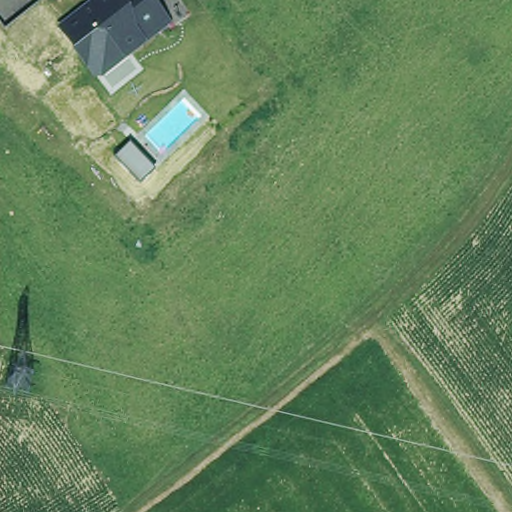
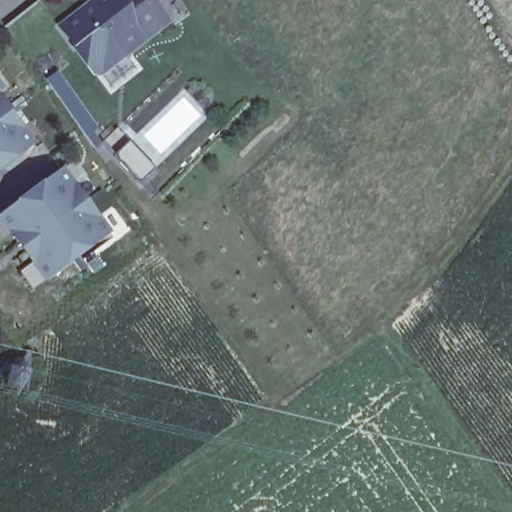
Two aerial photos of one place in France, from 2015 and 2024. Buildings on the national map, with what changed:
unchanged [(73,50),(60,32),(96,0),(118,0),(122,1),(123,0),(147,0),(161,20),(166,26),(143,46),(125,59),(101,76),(89,60),(78,47),(73,50)]
new [(37,143),(0,169),(0,94),(37,143)]
new [(155,168),(139,183),(102,144),(117,130),(155,168)]
new [(112,233),(44,282),(0,222),(0,214),(64,167),(112,233)]

